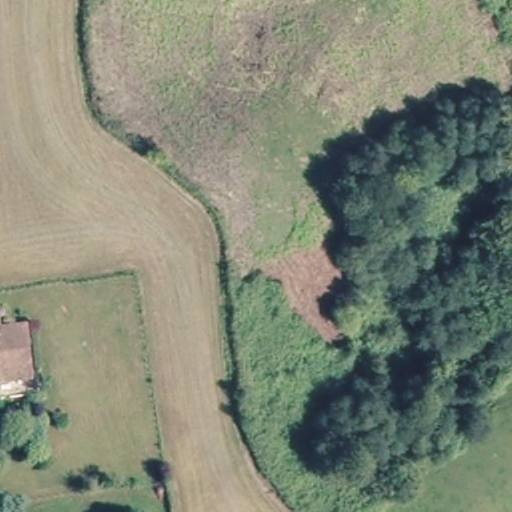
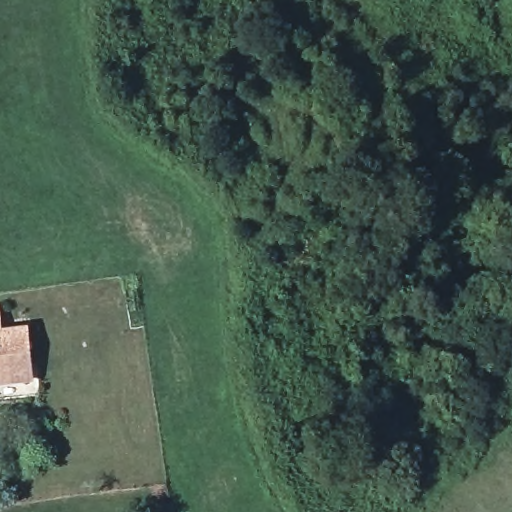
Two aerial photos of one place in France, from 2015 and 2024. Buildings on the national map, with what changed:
unchanged [(0,391),(0,347),(20,346),(23,389),(0,391)]

